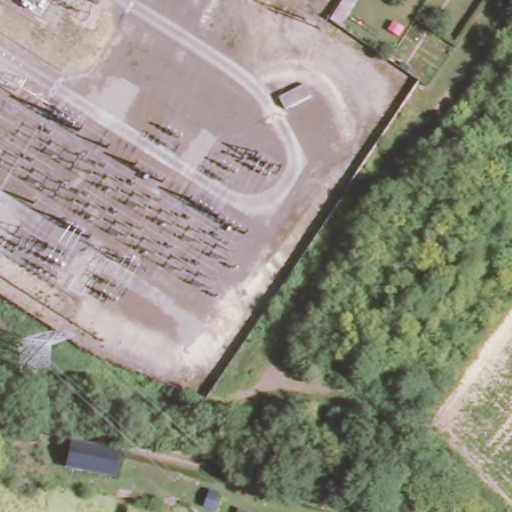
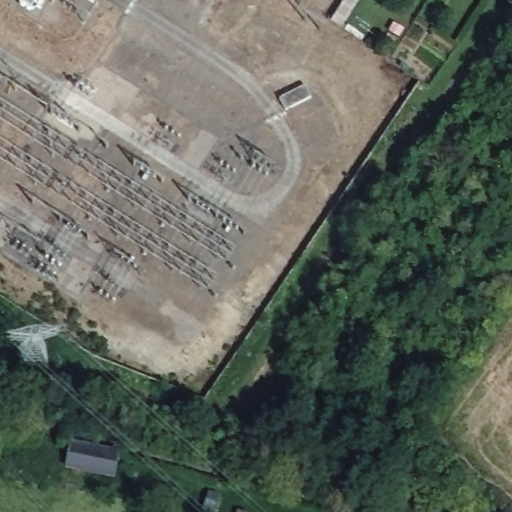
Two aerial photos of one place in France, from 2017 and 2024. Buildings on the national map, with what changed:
unchanged [(120,452),(118,474),(67,466),(70,445),(120,452)]

